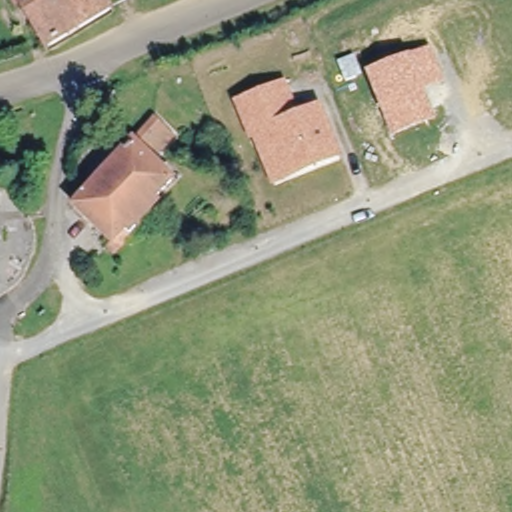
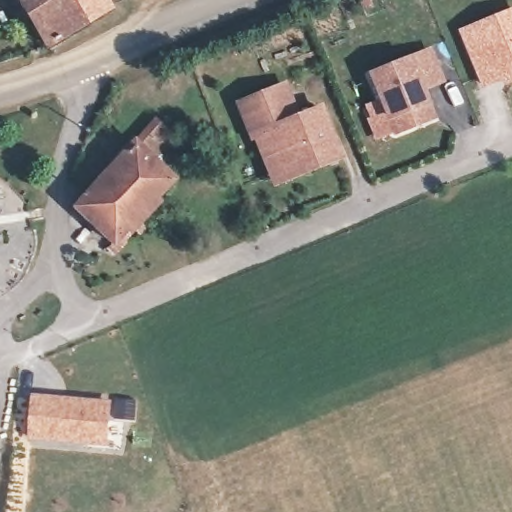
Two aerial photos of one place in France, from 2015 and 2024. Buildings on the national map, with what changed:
unchanged [(45,58),(10,0),(59,0),(81,35),(45,58)]
unchanged [(81,35),(59,0),(101,0),(111,16),(81,35)]
new [(480,89),(456,30),(512,7),(512,79),(480,89)]
unchanged [(428,48),(441,83),(422,89),(435,119),(390,135),(364,73),(428,48)]
unchanged [(298,112),(322,103),(345,160),(273,188),(253,141),(250,142),(234,102),(285,80),(298,112)]
unchanged [(137,239),(131,235),(123,243),(119,237),(110,244),(92,228),(74,209),(85,197),(135,146),(150,125),(175,141),(176,143),(160,172),(171,184),(139,217),(147,227),(137,239)]
new [(31,393),(136,399),(135,420),(112,418),(109,447),(28,438),(31,393)]

